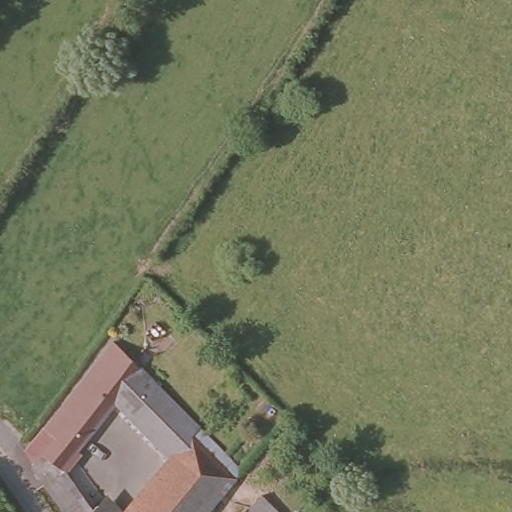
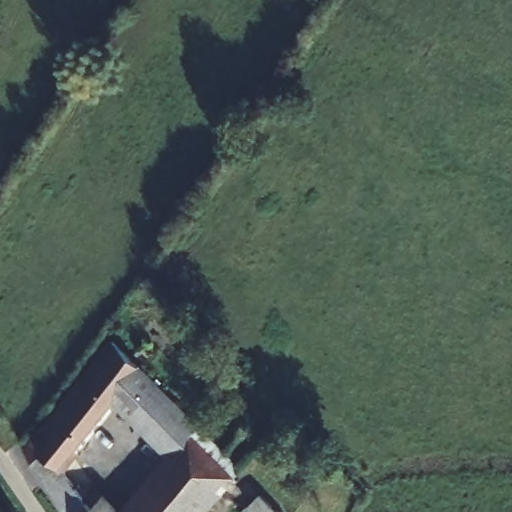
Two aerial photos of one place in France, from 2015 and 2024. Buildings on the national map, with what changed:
unchanged [(175,459),(121,401),(69,463),(101,507),(97,512),(79,512),(57,479),(47,462),(31,448),(93,375),(89,371),(105,351),(139,378),(134,385),(190,442),(202,428),(245,475),(212,512),(127,512),(132,506),(175,459)]
unchanged [(272,437),(256,422),(277,398),(292,414),(272,437)]
unchanged [(117,492),(132,506),(127,512),(97,512),(101,507),(117,492)]
unchanged [(283,512),(253,512),(248,508),(262,492),(283,512)]

